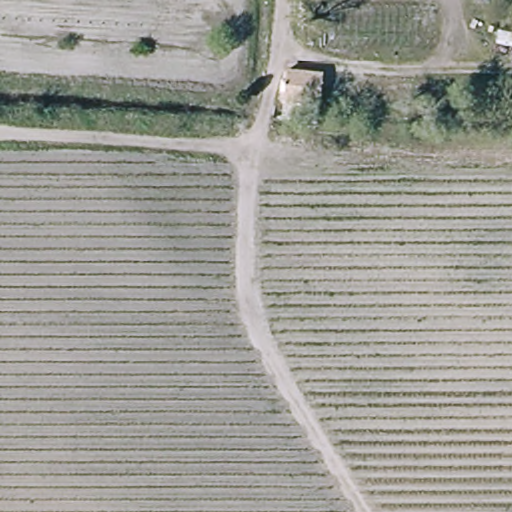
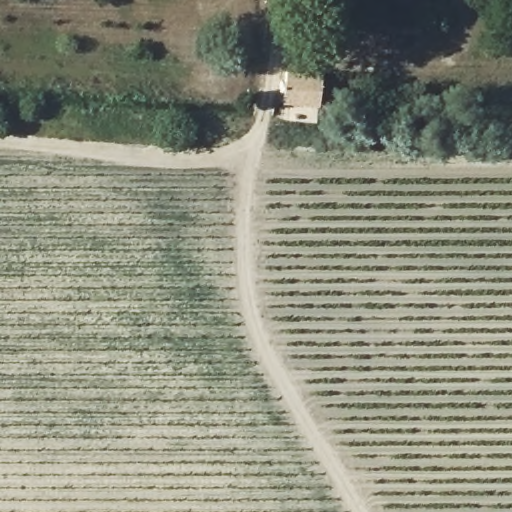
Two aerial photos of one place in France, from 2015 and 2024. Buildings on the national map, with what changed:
unchanged [(318,76),(316,99),(285,96),(287,74),(318,76)]

